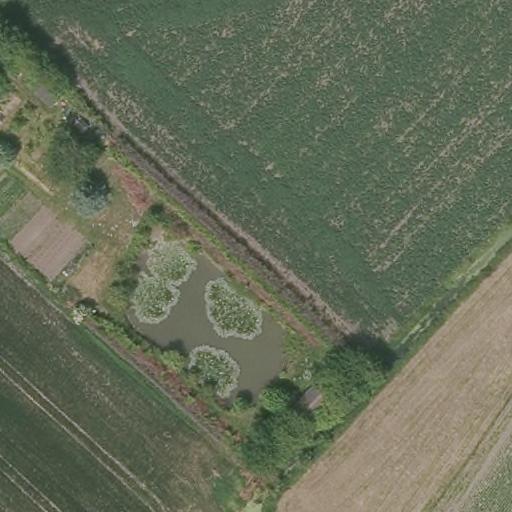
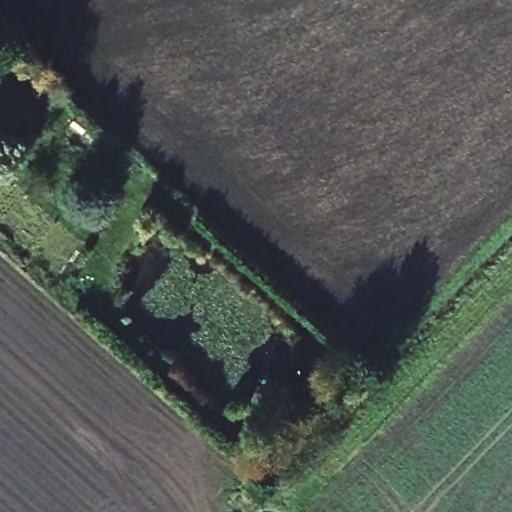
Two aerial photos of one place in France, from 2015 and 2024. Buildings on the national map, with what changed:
unchanged [(320,381),(336,397),(308,427),(291,411),(320,381)]

